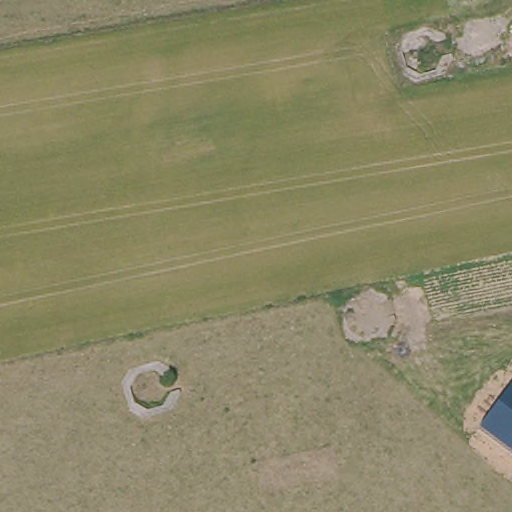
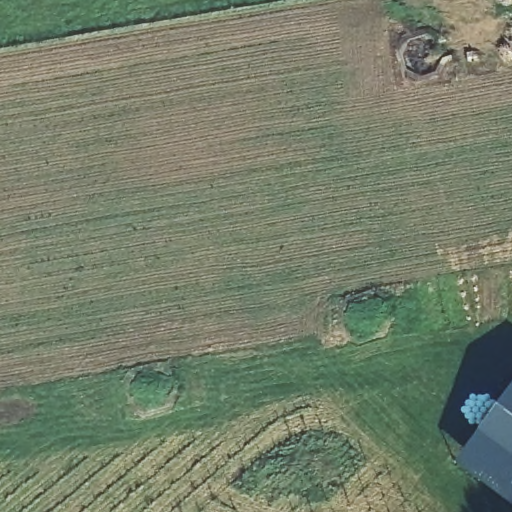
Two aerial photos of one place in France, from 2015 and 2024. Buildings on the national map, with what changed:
unchanged [(445,46),(447,55),(446,63),(440,71),(426,77),(412,75),(405,70),(400,62),(398,51),(402,41),(409,35),(419,32),(428,32),(439,38),(445,46)]
unchanged [(386,306),(387,316),(387,325),(377,333),(367,338),(358,337),(351,335),(345,328),(343,318),(342,307),(347,300),(355,295),(365,295),(382,300),(386,306)]
unchanged [(177,388),(176,393),(173,398),(162,407),(146,410),(134,407),(130,400),(127,390),(127,381),(131,371),(140,365),(151,362),(161,364),(172,375),(177,388)]
unchanged [(477,430),(512,385),(512,457),(477,430)]
new [(454,462),(477,430),(512,457),(512,505),(454,462)]

